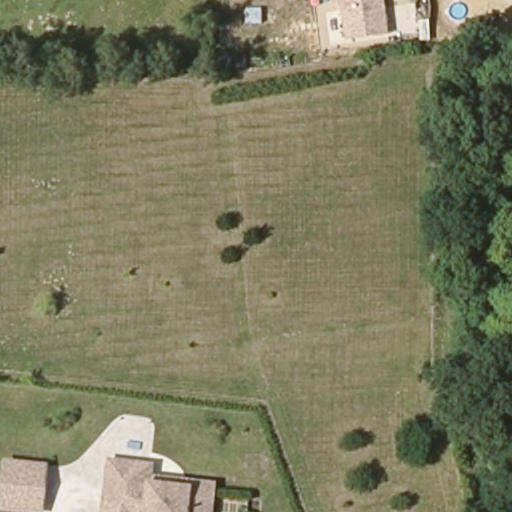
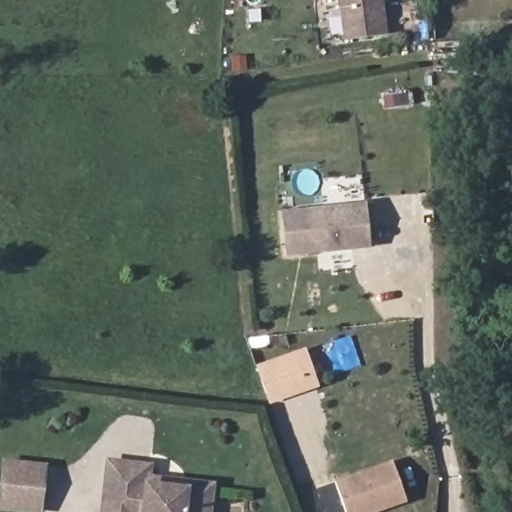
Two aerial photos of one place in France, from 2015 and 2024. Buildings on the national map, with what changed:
unchanged [(388,32),(346,39),(340,0),(384,0),(388,32)]
new [(370,248),(284,257),(279,210),(365,202),(370,248)]
new [(306,347),(320,387),(270,405),(255,365),(306,347)]
unchanged [(173,475),(184,476),(210,479),(207,512),(100,512),(106,455),(115,457),(147,460),(146,472),(173,475)]
new [(345,512),(334,480),(391,460),(406,501),(376,512),(345,512)]
unchanged [(43,466),(38,512),(0,508),(0,491),(4,462),(43,466)]

